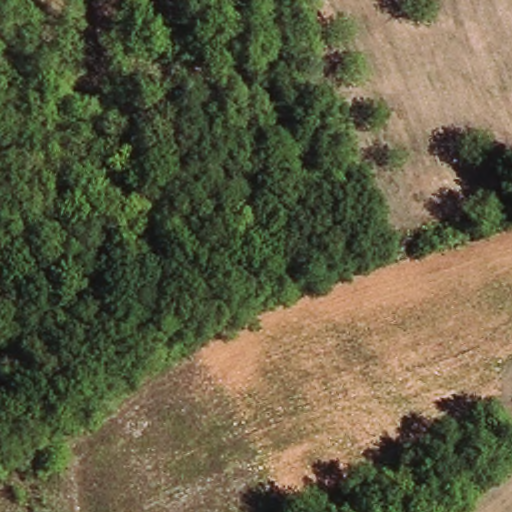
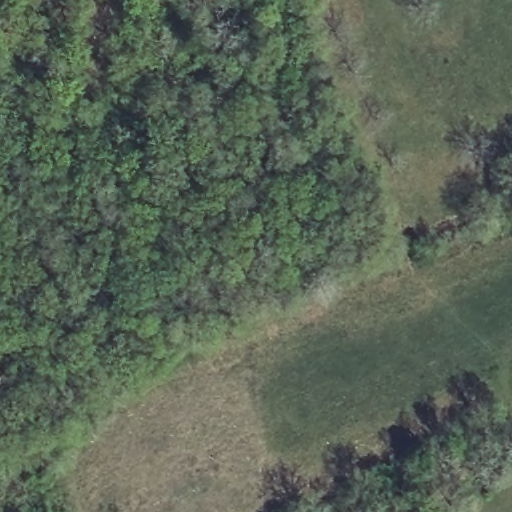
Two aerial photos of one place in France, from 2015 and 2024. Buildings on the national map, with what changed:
[]

